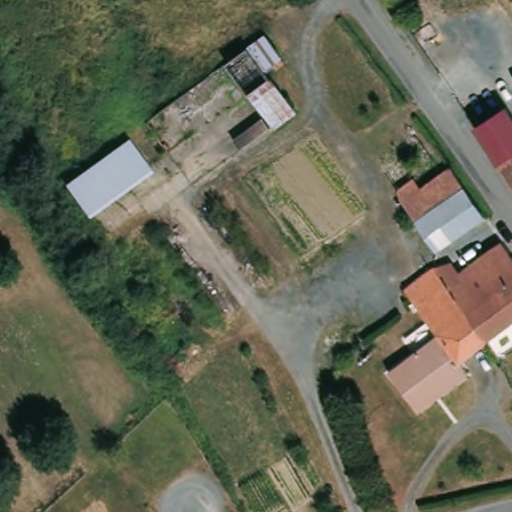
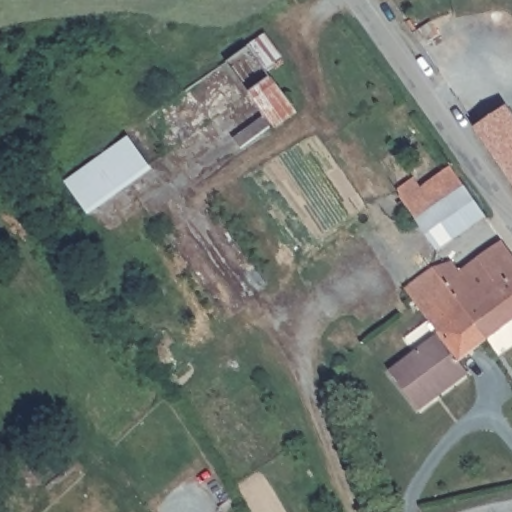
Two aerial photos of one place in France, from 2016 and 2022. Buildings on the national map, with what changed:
unchanged [(263,115),(248,92),(227,62),(248,46),(265,33),(283,57),(264,69),(269,78),(295,113),(272,128),(270,124),(239,148),(234,138),(263,115)]
unchanged [(492,145),(479,129),(512,107),(512,174),(492,145)]
unchanged [(153,166),(91,212),(68,181),(131,135),(153,166)]
unchanged [(466,186),(488,218),(458,239),(434,243),(406,205),(402,189),(412,181),(420,189),(451,166),(466,186)]
unchanged [(490,337),(483,328),(452,288),(436,269),(460,263),(466,270),(509,237),(512,241),(512,320),(490,337)]
unchanged [(414,398),(397,374),(443,335),(411,291),(436,269),(452,288),(483,328),(490,337),(463,359),(473,376),(424,415),(414,398)]

